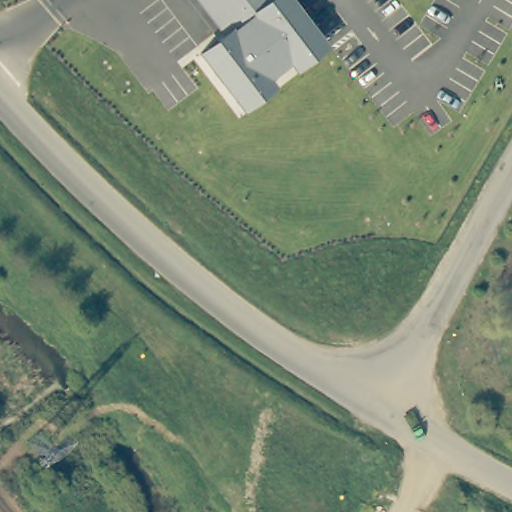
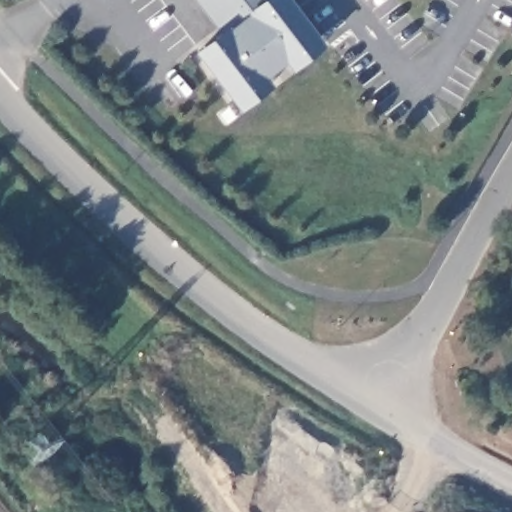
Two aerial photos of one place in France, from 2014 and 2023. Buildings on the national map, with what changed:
unchanged [(221,32),(197,0),(293,0),(330,47),(294,74),(286,65),(269,80),(275,88),(242,112),(195,51),(221,32)]

